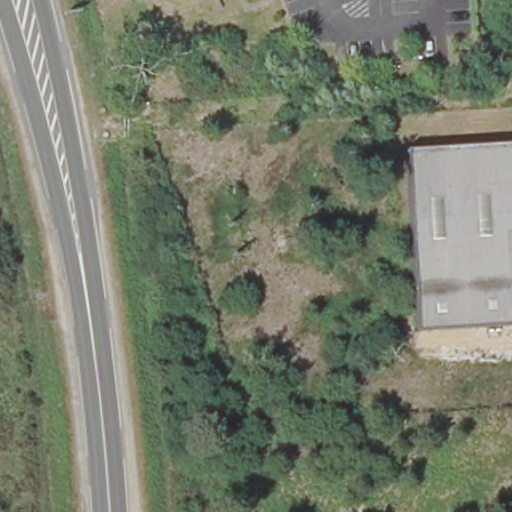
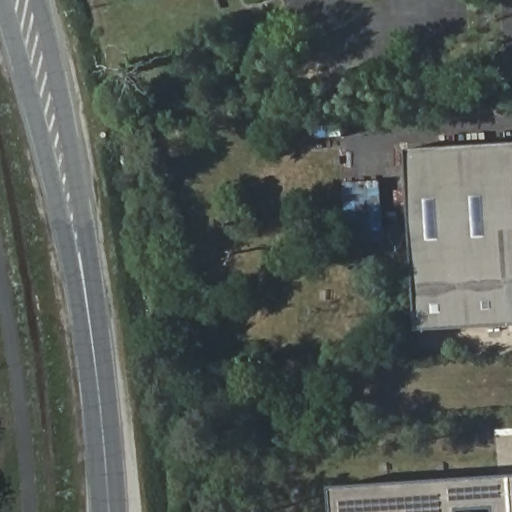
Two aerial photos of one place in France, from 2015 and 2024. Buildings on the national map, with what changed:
unchanged [(418,329),(408,150),(512,144),(512,323),(418,329)]
new [(344,184),(379,182),(384,239),(349,242),(344,184)]
new [(331,489),(512,477),(512,512),(333,512),(331,489)]

